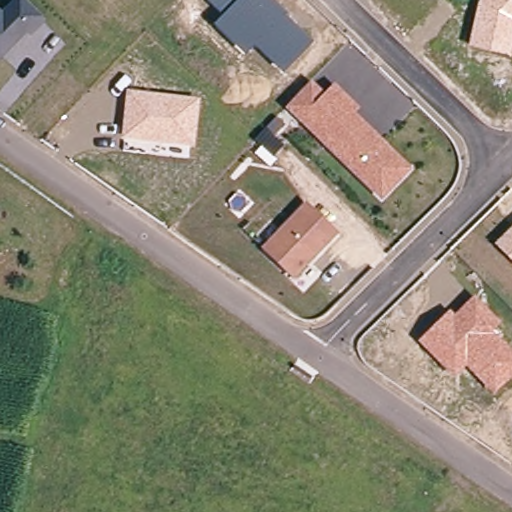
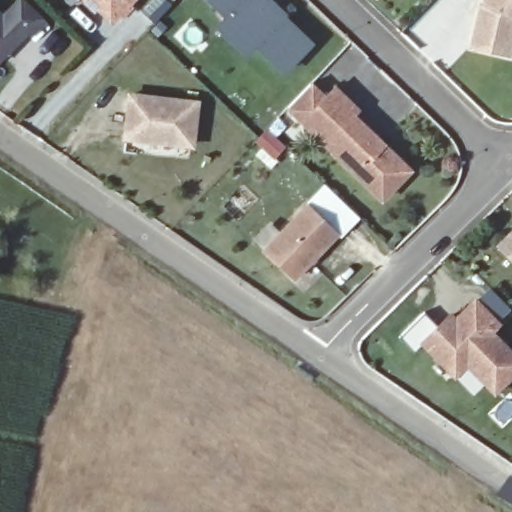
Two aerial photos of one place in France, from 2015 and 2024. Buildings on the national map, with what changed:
unchanged [(12,0),(25,0),(47,22),(31,38),(26,33),(0,60),(0,9),(1,11),(12,0)]
new [(131,4),(135,6),(124,16),(121,13),(111,23),(95,9),(100,5),(94,0),(135,0),(131,4)]
unchanged [(253,47),(245,55),(214,26),(225,14),(209,0),(274,0),(290,15),(288,17),(314,41),(284,74),(253,47)]
unchanged [(478,0),(512,0),(512,50),(511,56),(469,46),(478,0)]
unchanged [(311,80),(326,94),(335,84),(382,137),(411,170),(379,197),(286,107),(311,80)]
unchanged [(127,90),(200,98),(195,147),(121,139),(127,90)]
unchanged [(307,201),(338,231),(295,277),(262,246),(307,201)]
unchanged [(512,226),(512,262),(494,244),(512,226)]
unchanged [(451,310),(455,314),(475,293),(502,321),(495,330),(512,349),(512,377),(493,394),(466,366),(454,377),(418,342),(451,310)]

